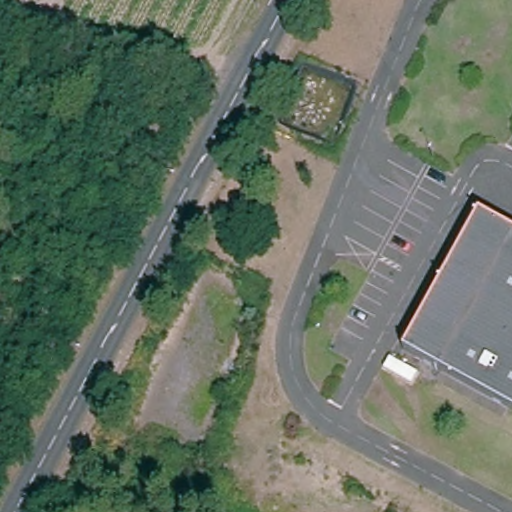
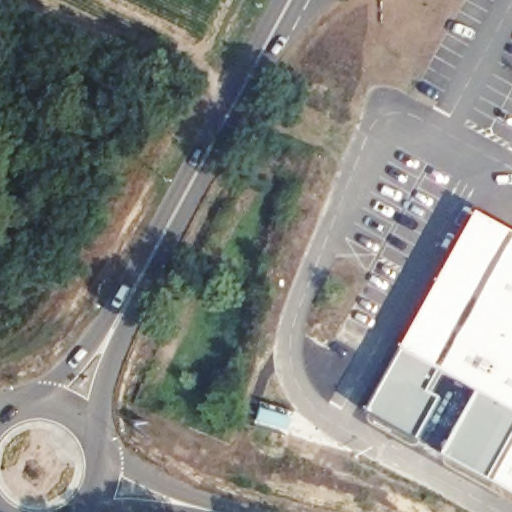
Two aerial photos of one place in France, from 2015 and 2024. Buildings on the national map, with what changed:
unchanged [(480,210),(512,228),(512,408),(402,347),(424,309),(480,210)]
new [(512,408),(512,444),(492,480),(491,482),(444,457),(480,393),(441,372),(429,392),(441,400),(419,440),(368,413),(404,347),(512,408)]
new [(512,444),(512,491),(492,480),(512,444)]

